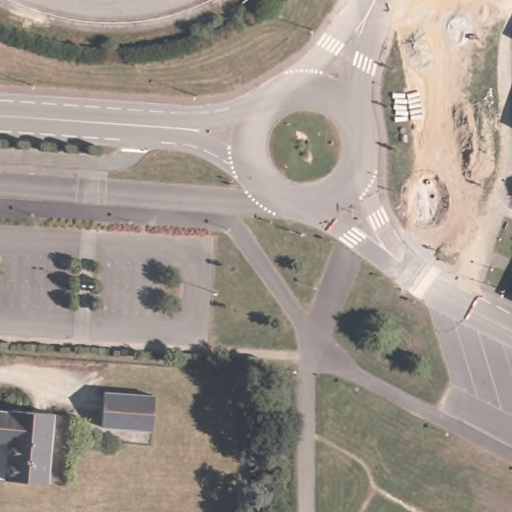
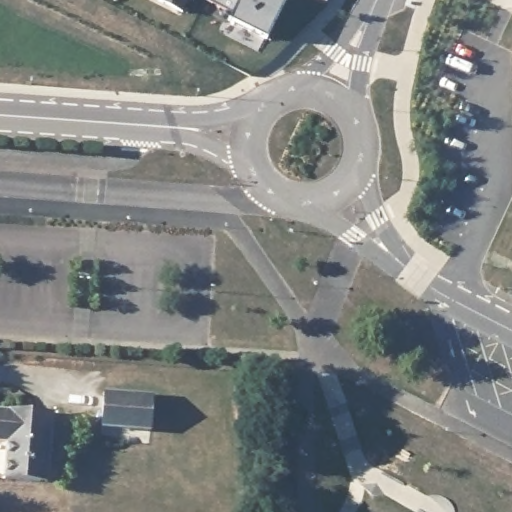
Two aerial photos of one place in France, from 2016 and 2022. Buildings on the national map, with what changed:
new [(156,4),(158,0),(188,0),(181,14),(156,4)]
new [(284,0),(285,0),(266,38),(230,20),(231,18),(205,1),(206,0),(284,0)]
unchanged [(155,397),(154,431),(104,430),(105,395),(155,397)]
unchanged [(14,403),(54,407),(50,479),(9,477),(11,437),(0,435),(0,407),(14,409),(14,403)]

